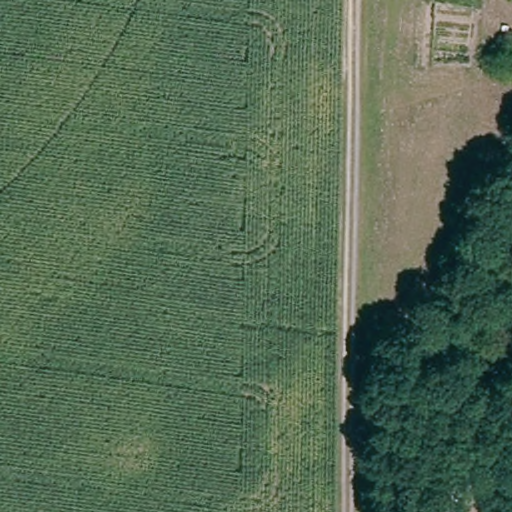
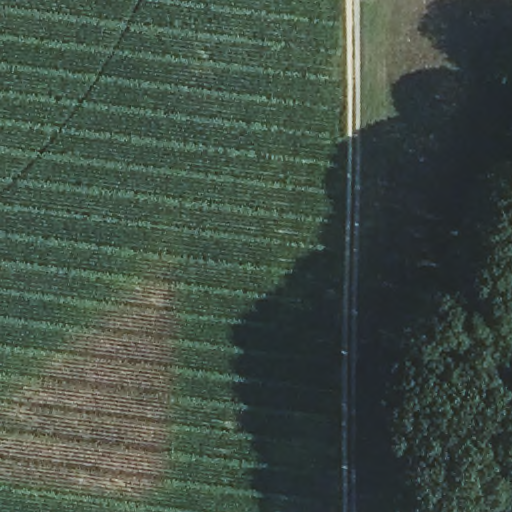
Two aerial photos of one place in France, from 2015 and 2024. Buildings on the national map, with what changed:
[]

